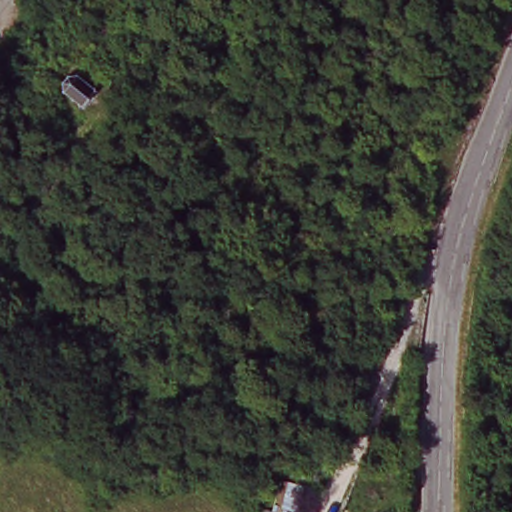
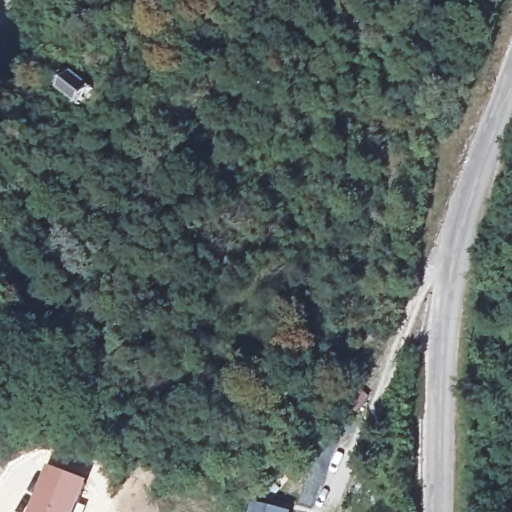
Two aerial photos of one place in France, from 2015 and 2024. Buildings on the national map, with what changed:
unchanged [(96,94),(87,108),(61,94),(70,81),(96,94)]
new [(48,465),(91,481),(79,512),(30,512),(48,465)]

